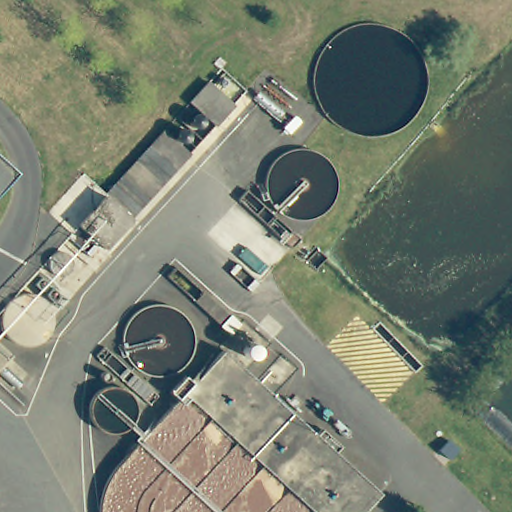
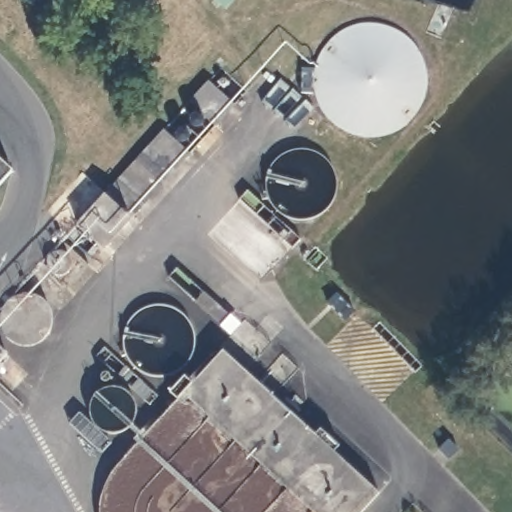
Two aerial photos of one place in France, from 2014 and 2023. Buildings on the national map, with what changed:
unchanged [(78,222),(104,192),(135,160),(160,127),(193,156),(162,187),(110,251),(78,222)]
unchanged [(19,171),(11,181),(0,194),(0,155),(19,171)]
unchanged [(233,210),(242,199),(294,245),(286,256),(233,210)]
unchanged [(222,325),(213,335),(158,284),(168,273),(222,325)]
unchanged [(16,345),(10,341),(3,335),(0,328),(0,320),(0,314),(5,304),(11,297),(17,292),(27,292),(37,293),(45,300),(49,310),(50,323),(49,330),(28,345),(16,345)]
unchanged [(360,512),(320,512),(184,388),(224,343),(318,430),(322,423),(342,440),(337,447),(383,486),(360,512)]
unchanged [(159,393),(152,401),(100,355),(106,346),(159,393)]

